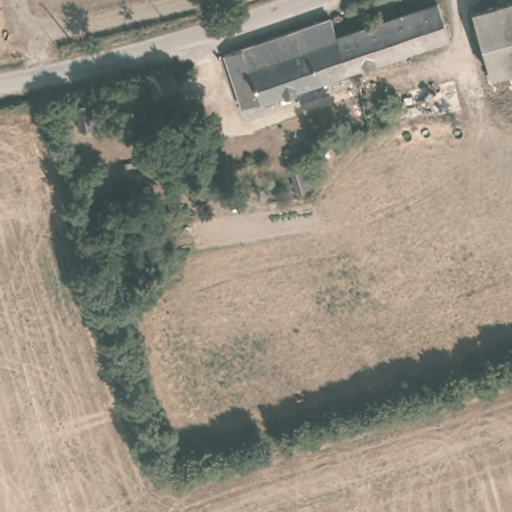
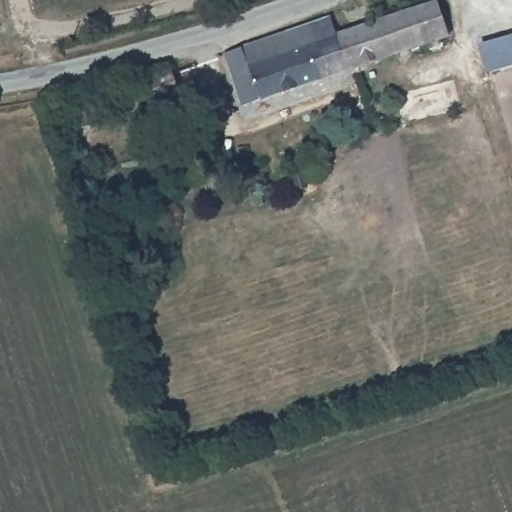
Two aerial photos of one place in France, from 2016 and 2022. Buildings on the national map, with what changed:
unchanged [(330,18),(332,29),(342,25),(345,34),(435,4),(447,40),(236,106),(220,55),(330,18)]
unchanged [(512,6),(512,72),(487,80),(468,21),(512,6)]
unchanged [(170,74),(179,96),(152,103),(146,82),(170,74)]
unchanged [(72,130),(71,100),(75,101),(77,94),(90,90),(92,128),(72,130)]

